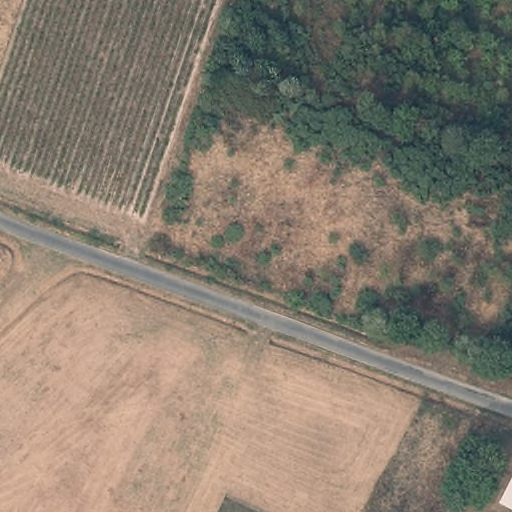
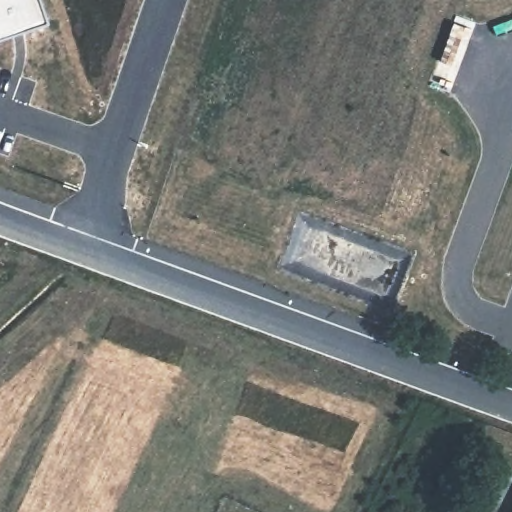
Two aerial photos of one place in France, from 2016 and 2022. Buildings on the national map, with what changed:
new [(0,33),(0,0),(40,0),(47,18),(0,33)]

